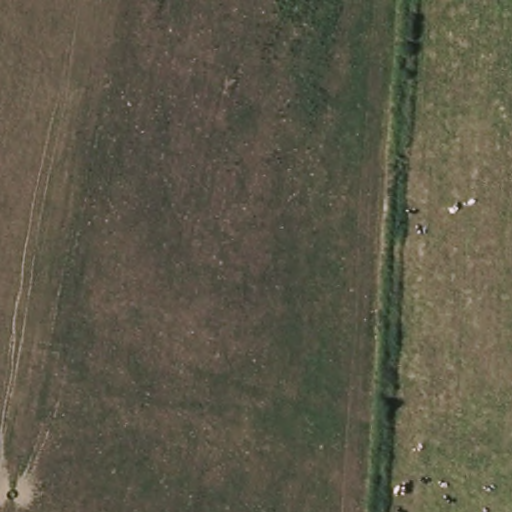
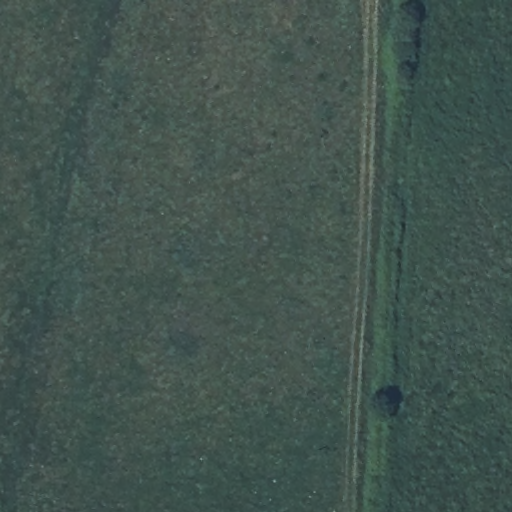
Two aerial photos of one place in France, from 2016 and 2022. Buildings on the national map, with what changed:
[]

